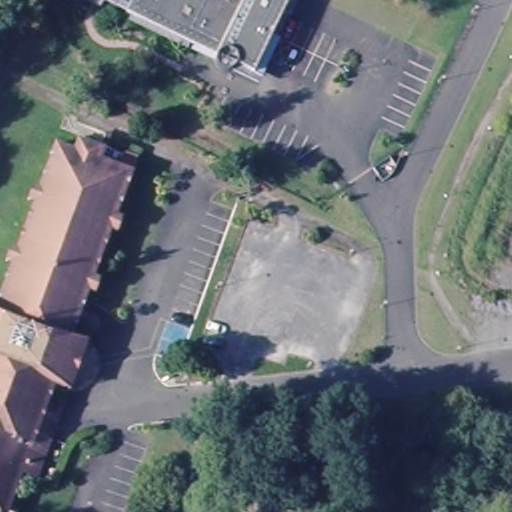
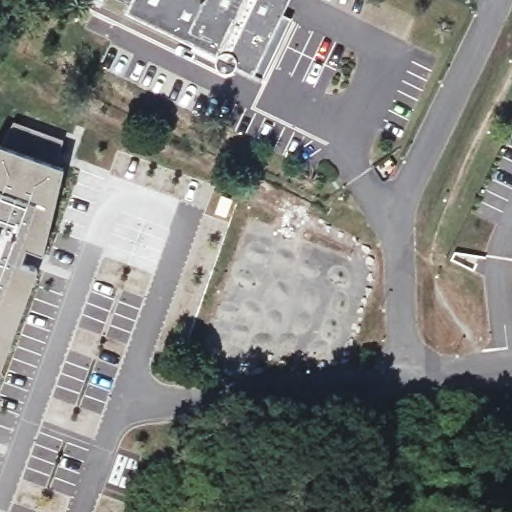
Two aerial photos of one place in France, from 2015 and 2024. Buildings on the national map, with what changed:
unchanged [(98,10),(84,5),(86,0),(102,0),(98,10)]
unchanged [(258,86),(230,74),(227,75),(224,75),(221,75),(218,73),(216,70),(215,67),(215,65),(215,62),(215,60),(123,15),(126,8),(111,0),(288,0),(269,40),(278,44),(258,86)]
new [(26,247),(20,262),(37,270),(0,372),(0,145),(6,147),(14,123),(62,141),(63,169),(42,254),(26,247)]
demolished [(32,205),(37,191),(53,147),(70,153),(97,162),(119,170),(123,155),(135,159),(130,174),(114,219),(109,232),(93,278),(88,292),(72,337),(55,386),(45,414),(61,419),(40,479),(24,473),(12,505),(0,501),(0,299),(11,265),(16,250),(32,205)]

